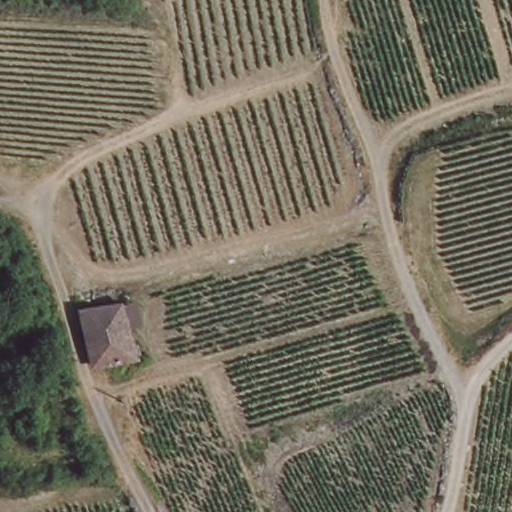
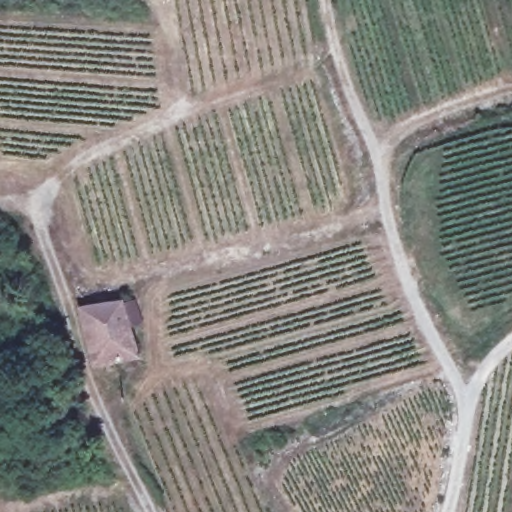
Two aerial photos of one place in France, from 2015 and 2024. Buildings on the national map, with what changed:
unchanged [(77,313),(88,310),(130,304),(135,320),(137,324),(123,329),(128,346),(135,345),(137,355),(137,357),(110,364),(90,367),(77,313)]

